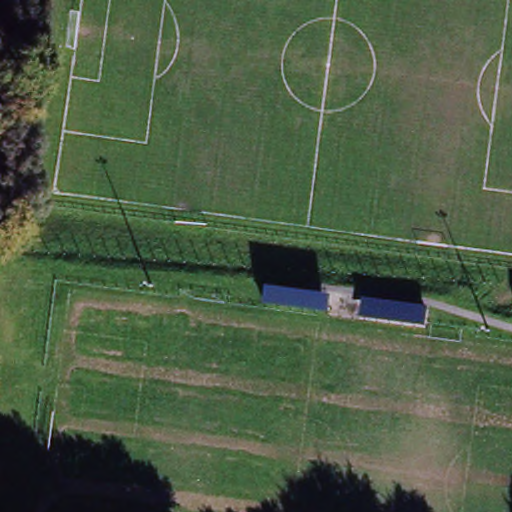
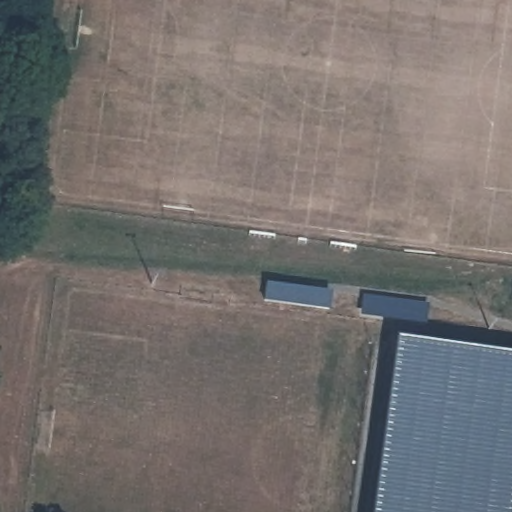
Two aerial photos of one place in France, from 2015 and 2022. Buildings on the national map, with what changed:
unchanged [(263,302),(264,283),(324,291),(323,310),(263,302)]
unchanged [(361,315),(362,297),(426,307),(424,324),(361,315)]
new [(393,339),(512,355),(512,505),(511,512),(370,512),(393,339)]
new [(512,505),(512,512),(511,512),(512,505)]

